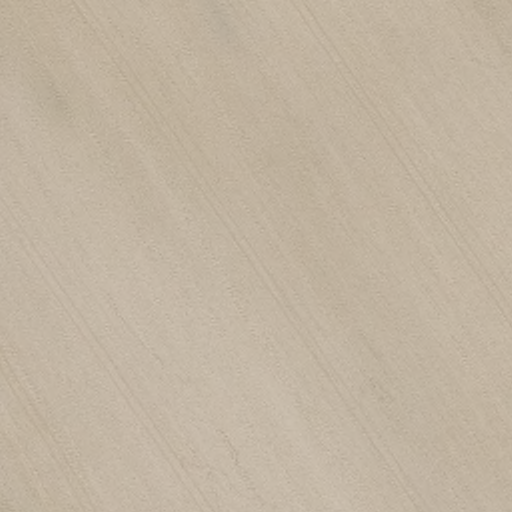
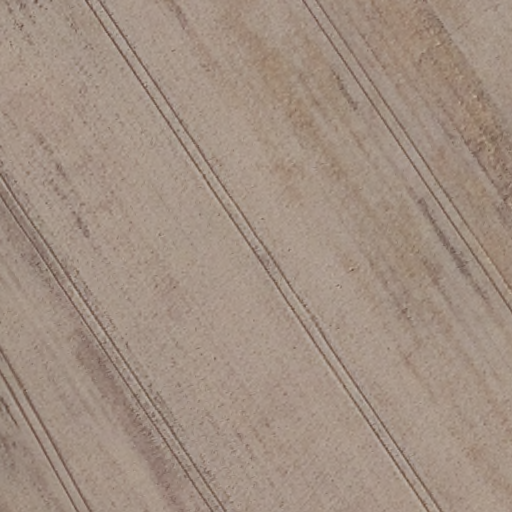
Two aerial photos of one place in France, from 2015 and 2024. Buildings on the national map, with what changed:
[]

